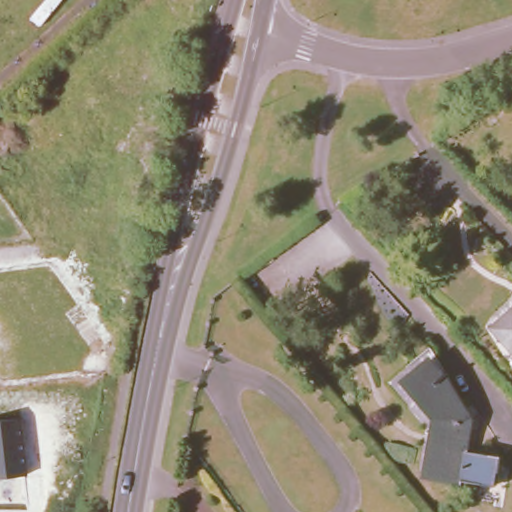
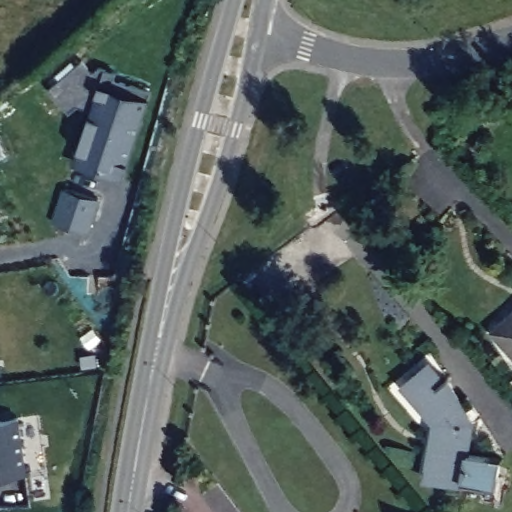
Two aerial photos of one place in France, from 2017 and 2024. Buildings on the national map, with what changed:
new [(91,109),(76,105),(69,112),(47,87),(59,76),(55,72),(70,59),(74,63),(80,58),(91,70),(97,65),(116,72),(114,80),(151,91),(123,178),(74,162),(91,109)]
new [(65,190),(99,201),(88,236),(53,225),(65,190)]
unchanged [(512,310),(512,346),(494,325),(512,310)]
unchanged [(442,383),(446,380),(472,421),(464,452),(500,462),(490,492),(423,471),(437,418),(409,383),(430,363),(442,383)]
unchanged [(0,480),(0,420),(21,418),(27,476),(0,480)]

